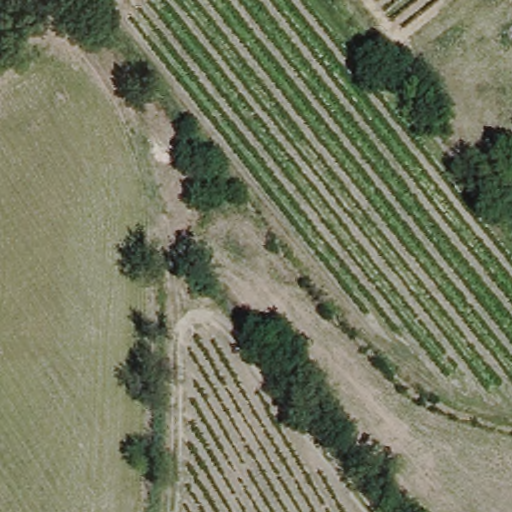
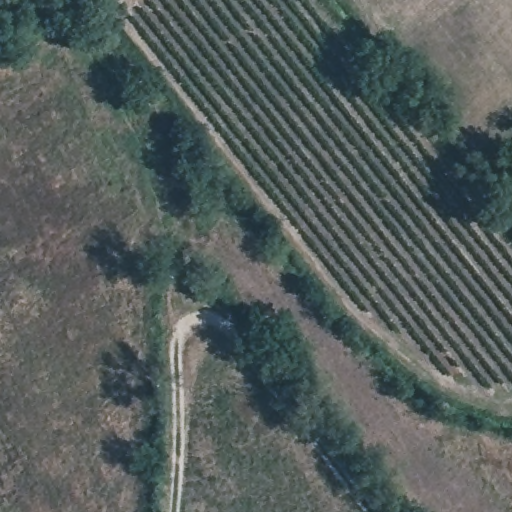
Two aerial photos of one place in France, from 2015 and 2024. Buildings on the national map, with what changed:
[]

